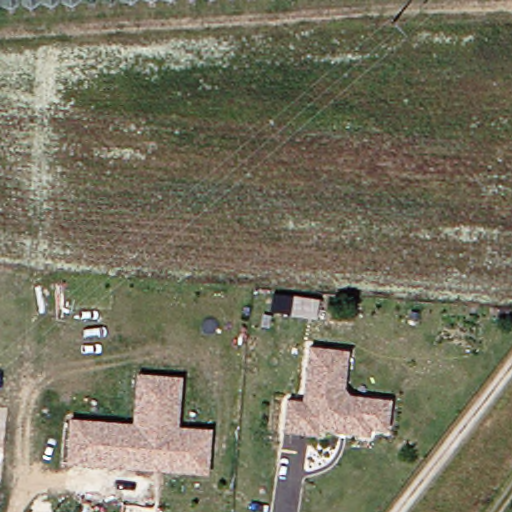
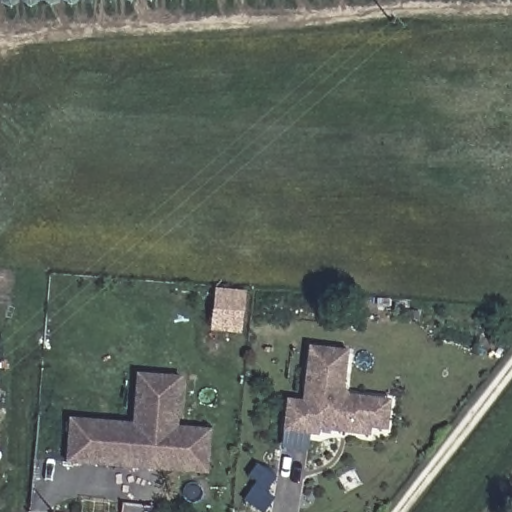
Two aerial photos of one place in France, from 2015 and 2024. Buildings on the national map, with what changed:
new [(246,291),(242,334),(211,331),(215,288),(246,291)]
unchanged [(342,430),(322,428),(321,434),(287,432),(289,400),(305,401),(309,346),(348,349),(345,386),(351,393),(376,395),(392,396),(390,426),(374,424),(373,432),(342,430)]
unchanged [(202,474),(149,468),(126,465),(131,422),(137,373),(179,377),(174,427),(190,429),(187,460),(204,462),(202,474)]
unchanged [(63,458),(68,415),(100,419),(96,462),(63,458)]
unchanged [(131,422),(126,465),(96,462),(100,419),(131,422)]

